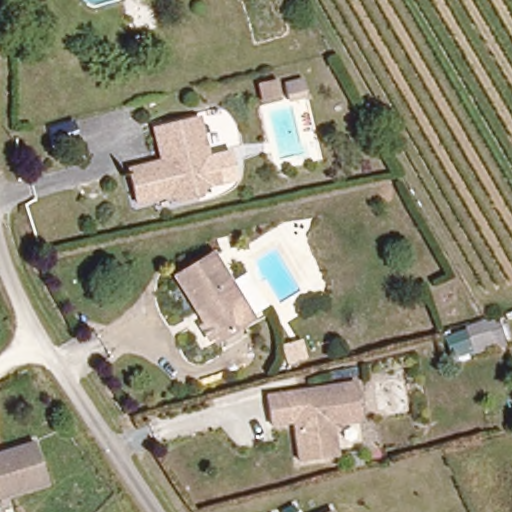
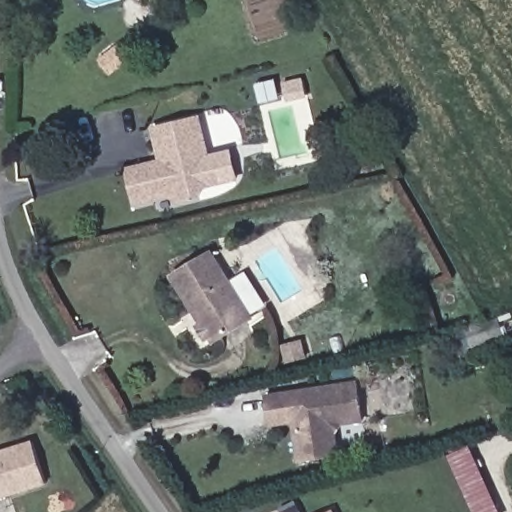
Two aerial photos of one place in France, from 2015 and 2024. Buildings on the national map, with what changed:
unchanged [(281,88),(285,102),(266,107),(262,92),(281,88)]
unchanged [(206,185),(197,200),(174,206),(161,199),(135,206),(124,171),(158,161),(151,132),(197,120),(209,157),(213,172),(206,185)]
unchanged [(169,278),(206,255),(249,317),(213,342),(169,278)]
unchanged [(357,381),(361,411),(341,413),(336,420),(340,455),(302,461),(296,421),(275,423),(270,393),(357,381)]
unchanged [(45,483),(8,492),(13,512),(0,512),(0,448),(34,440),(45,483)]
new [(469,445),(501,512),(474,512),(448,455),(469,445)]

